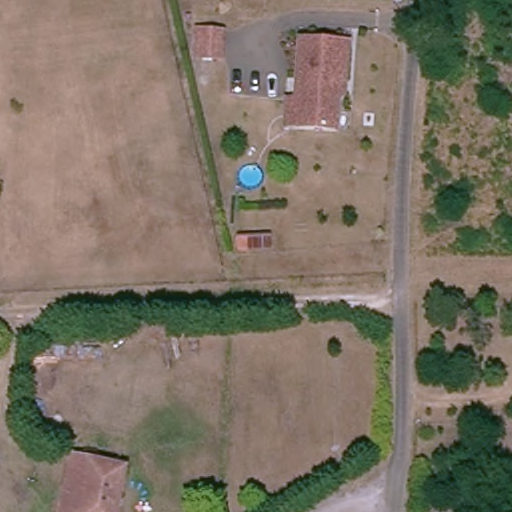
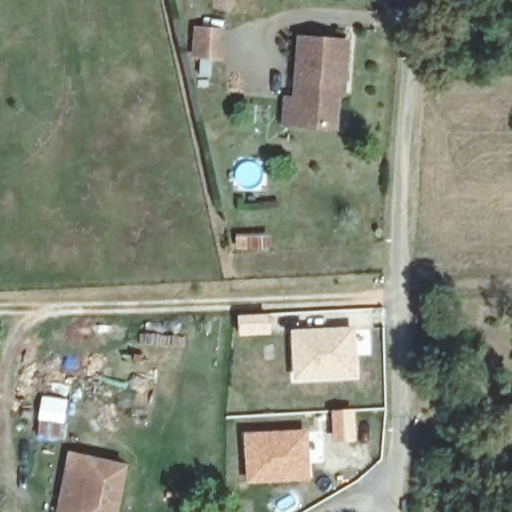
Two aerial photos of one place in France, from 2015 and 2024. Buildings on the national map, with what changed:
unchanged [(218,62),(193,59),(197,32),(222,35),(218,62)]
unchanged [(290,102),(298,104),(306,40),(353,46),(348,86),(347,99),(341,98),(337,133),(299,129),(287,127),(290,102)]
new [(296,377),(294,334),(352,331),(354,374),(296,377)]
new [(249,483),(247,438),(306,435),(307,480),(249,483)]
unchanged [(118,463),(112,512),(61,512),(68,460),(69,456),(118,463)]

